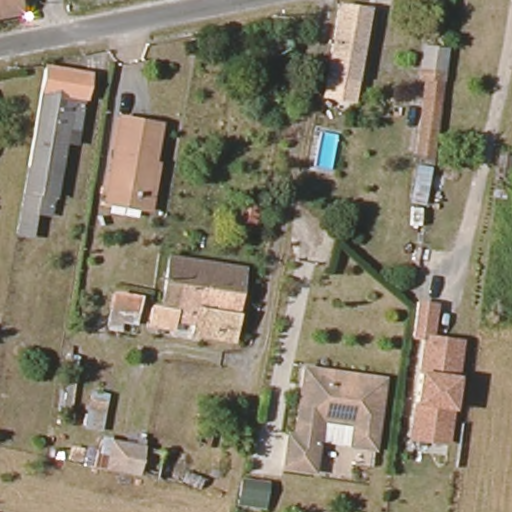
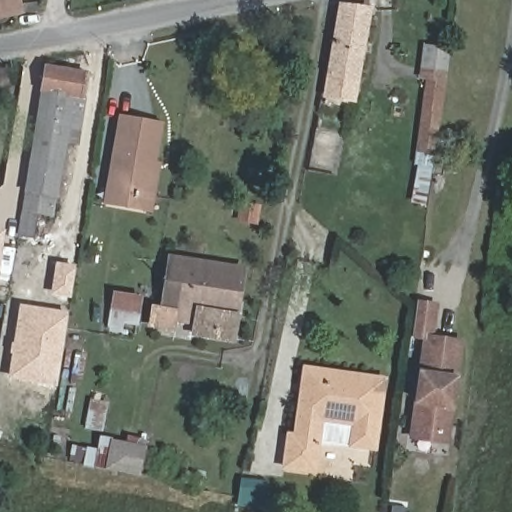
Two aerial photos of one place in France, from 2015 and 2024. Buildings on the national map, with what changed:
unchanged [(0,20),(0,0),(15,0),(18,16),(0,20)]
unchanged [(323,98),(328,72),(341,5),(370,9),(358,77),(355,101),(323,98)]
unchanged [(444,79),(422,75),(427,46),(448,49),(444,79)]
unchanged [(19,232),(23,209),(46,66),(88,74),(80,127),(77,141),(65,140),(52,214),(37,211),(32,235),(19,232)]
unchanged [(433,161),(417,160),(427,79),(443,81),(433,161)]
unchanged [(150,209),(106,201),(108,189),(121,117),(159,124),(153,161),(159,162),(150,209)]
unchanged [(510,179),(512,163),(512,179),(510,179)]
unchanged [(267,226),(248,223),(251,206),(270,210),(267,226)]
new [(0,261),(0,230),(4,230),(0,261)]
unchanged [(170,260),(244,272),(239,302),(208,296),(166,289),(170,260)]
unchanged [(233,343),(193,337),(195,326),(176,324),(174,332),(151,328),(154,310),(166,311),(166,307),(163,307),(166,289),(208,296),(239,302),(233,343)]
unchanged [(111,321),(112,316),(115,295),(141,298),(137,320),(123,318),(123,323),(111,321)]
unchanged [(414,337),(419,303),(434,305),(431,338),(464,343),(457,381),(465,381),(463,397),(455,395),(453,418),(451,428),(446,435),(435,438),(426,435),(419,428),(416,419),(424,379),(427,337),(414,337)]
new [(68,312),(57,387),(6,379),(18,304),(68,312)]
unchanged [(318,466),(292,462),(296,435),(303,435),(312,368),(387,379),(378,443),(357,440),(322,435),(318,466)]
unchanged [(101,426),(89,424),(93,403),(104,405),(101,426)]
unchanged [(219,447),(211,445),(214,436),(222,439),(219,447)]
unchanged [(94,467),(99,439),(111,441),(112,440),(145,446),(138,474),(138,476),(106,470),(94,467)]
unchanged [(74,461),(65,460),(66,452),(75,454),(74,461)]
unchanged [(281,480),(278,499),(254,495),(256,477),(281,480)]

